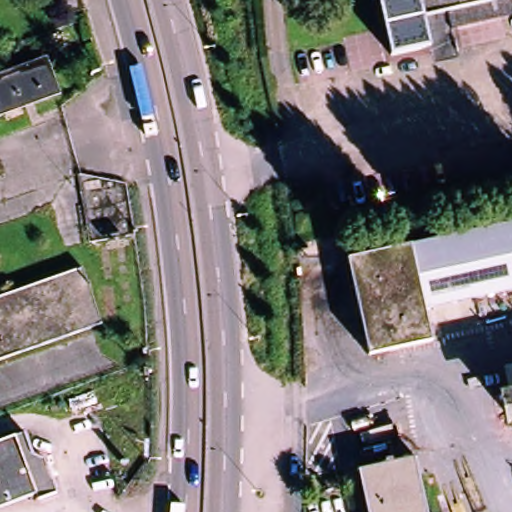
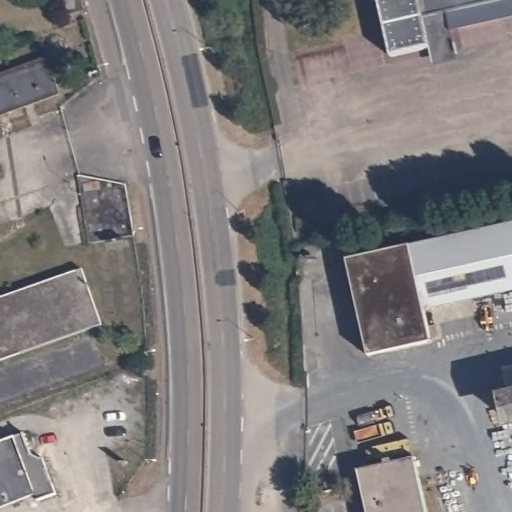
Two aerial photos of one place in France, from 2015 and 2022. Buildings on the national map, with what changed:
unchanged [(71,19),(65,0),(81,0),(85,12),(71,19)]
unchanged [(427,17),(432,47),(394,55),(382,0),(512,0),(512,1),(427,17)]
unchanged [(59,93),(0,116),(0,77),(48,57),(59,93)]
unchanged [(372,357),(351,262),(512,227),(512,325),(372,357)]
unchanged [(0,365),(0,297),(78,268),(101,328),(0,365)]
unchanged [(505,370),(512,368),(512,393),(509,393),(505,370)]
unchanged [(505,431),(497,396),(509,393),(512,393),(512,429),(505,431)]
unchanged [(32,457),(46,460),(57,489),(39,498),(36,492),(0,505),(0,443),(25,434),(32,457)]
unchanged [(368,512),(360,474),(418,460),(430,512),(368,512)]

